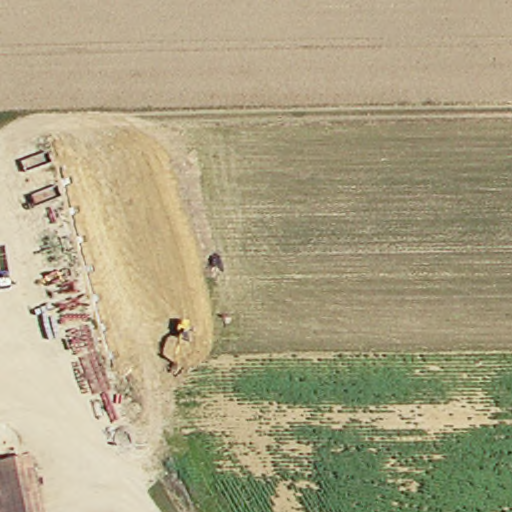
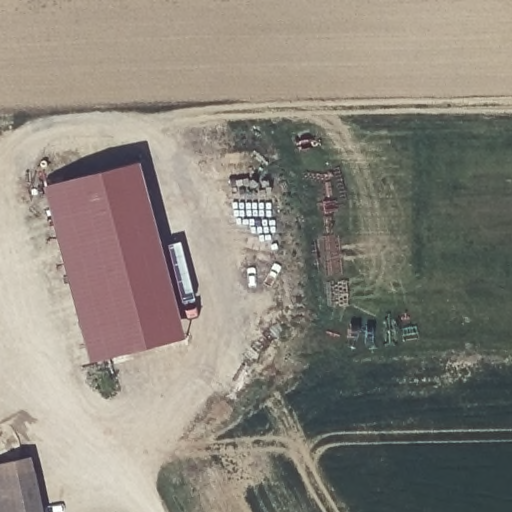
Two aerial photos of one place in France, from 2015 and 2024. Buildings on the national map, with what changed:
new [(92,361),(46,188),(144,161),(188,336),(92,361)]
unchanged [(39,463),(46,512),(0,512),(0,467),(39,463)]

